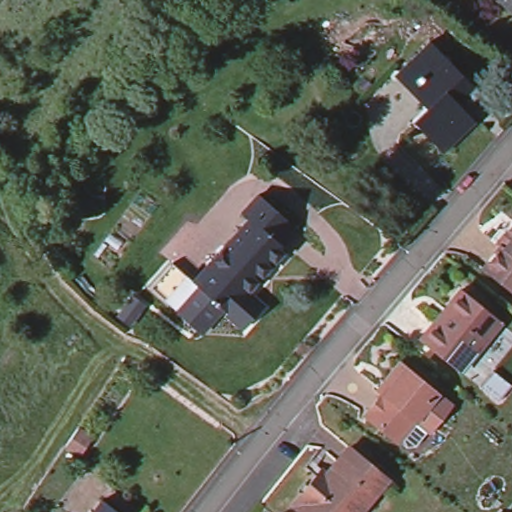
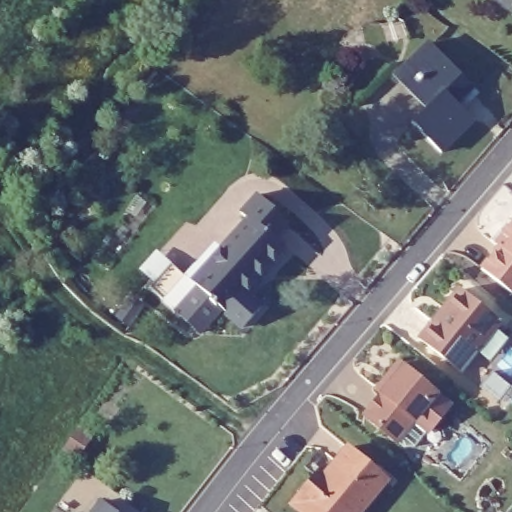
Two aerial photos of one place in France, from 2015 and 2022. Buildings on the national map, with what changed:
unchanged [(496,0),(512,0),(512,12),(496,0)]
unchanged [(474,85),(458,102),(474,119),(442,150),(412,119),(429,100),(399,68),(429,39),(474,85)]
unchanged [(237,215),(254,196),(283,222),(267,239),(278,250),(238,294),(254,309),(238,328),(186,281),(242,219),(237,215)]
unchanged [(484,265),(502,243),(498,239),(504,230),(512,221),(512,288),(484,265)]
unchanged [(499,323),(461,371),(419,338),(434,321),(437,323),(447,311),(444,308),(459,290),(499,323)]
unchanged [(389,436),(357,411),(375,388),(369,384),(374,378),(389,360),(439,400),(419,425),(402,447),(389,436)]
unchanged [(315,488),(325,475),(331,480),(354,452),(379,473),(348,512),(301,512),(298,509),(315,488)]
unchanged [(114,512),(93,512),(101,502),(114,512)]

